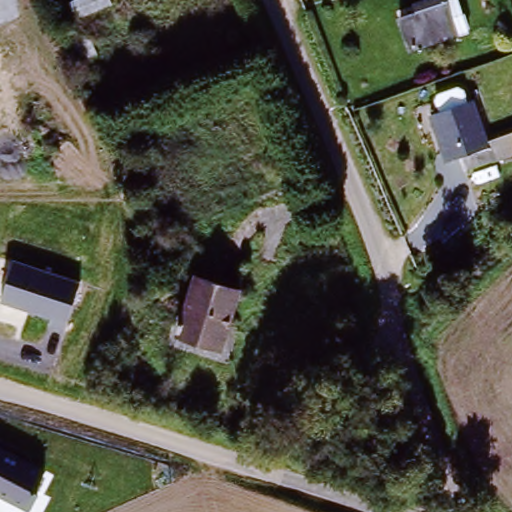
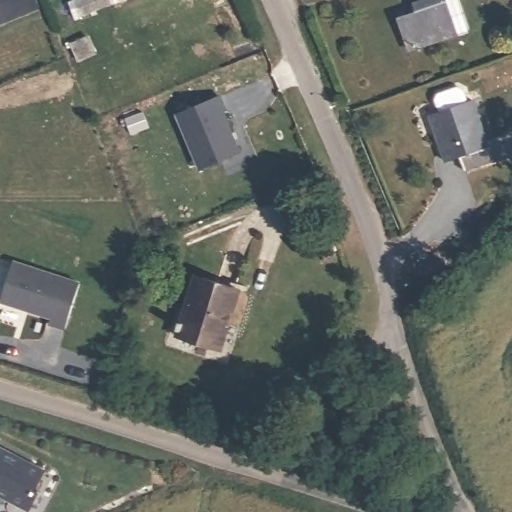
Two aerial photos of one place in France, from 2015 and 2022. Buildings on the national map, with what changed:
unchanged [(73,21),(67,4),(77,0),(107,0),(110,6),(73,21)]
unchanged [(421,18),(416,7),(424,3),(427,0),(446,0),(446,1),(448,0),(460,0),(473,31),(462,35),(415,53),(403,24),(421,18)]
unchanged [(93,54),(78,61),(70,44),(86,37),(93,54)]
unchanged [(427,105),(458,95),(460,103),(473,100),(488,141),(511,133),(512,136),(512,155),(466,172),(462,157),(443,163),(427,105)]
new [(218,97),(225,113),(222,114),(238,154),(198,170),(175,115),(218,97)]
unchanged [(80,283),(65,329),(50,323),(52,316),(2,302),(13,260),(80,283)]
unchanged [(243,289),(223,355),(172,338),(193,273),(243,289)]
unchanged [(32,512),(29,512),(0,498),(0,446),(48,472),(32,512)]

